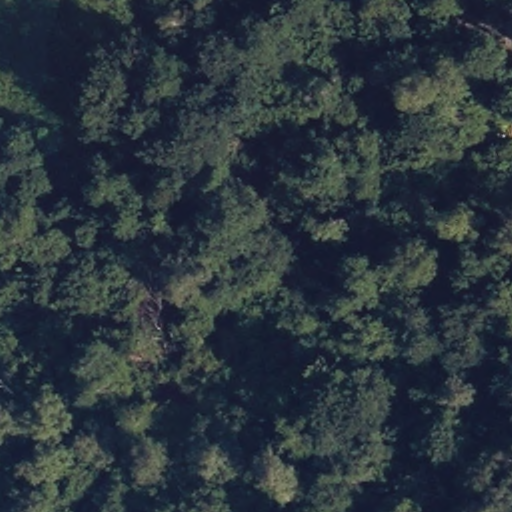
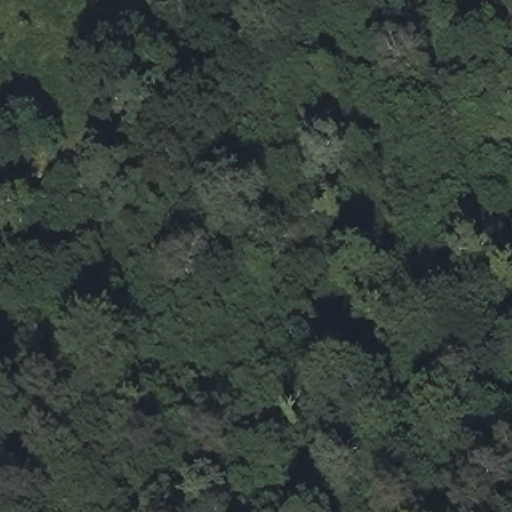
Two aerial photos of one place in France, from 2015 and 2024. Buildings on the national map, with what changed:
[]

